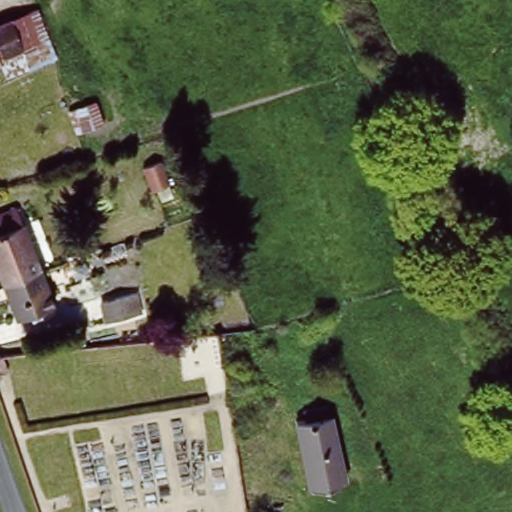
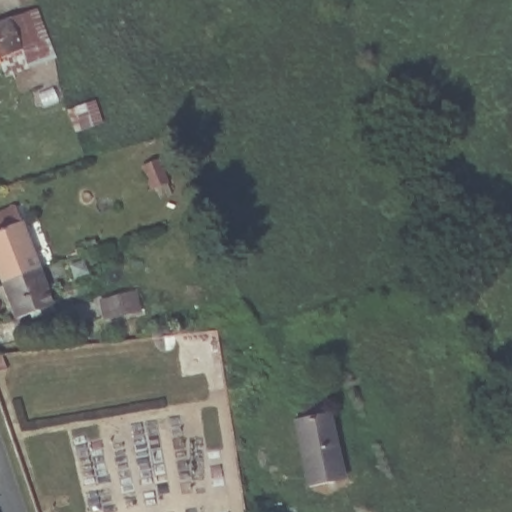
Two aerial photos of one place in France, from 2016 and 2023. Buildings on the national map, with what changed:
unchanged [(47,36),(39,39),(45,56),(29,62),(31,70),(7,79),(0,61),(0,23),(37,9),(47,36)]
unchanged [(38,262),(40,269),(0,283),(0,281),(0,217),(20,210),(33,246),(45,241),(52,257),(38,262)]
unchanged [(40,269),(42,272),(55,312),(17,325),(2,288),(0,283),(40,269)]
unchanged [(132,288),(138,306),(128,310),(130,315),(104,322),(97,300),(132,288)]
unchanged [(330,404),(342,460),(356,457),(365,503),(351,507),(344,478),(307,485),(292,412),(330,404)]

